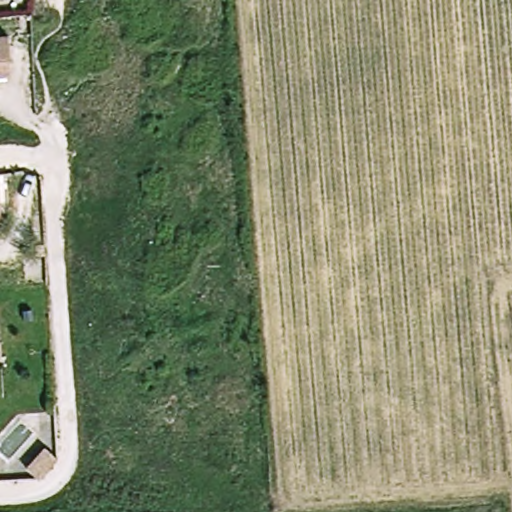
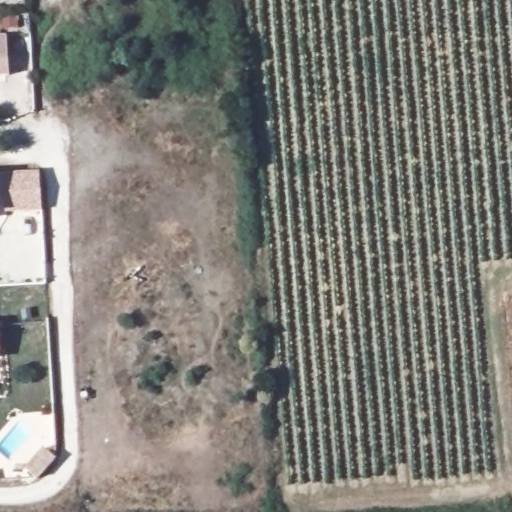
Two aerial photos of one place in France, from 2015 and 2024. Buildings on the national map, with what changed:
unchanged [(12,71),(0,72),(0,32),(9,31),(12,71)]
new [(41,171),(43,212),(7,214),(4,174),(41,171)]
demolished [(19,213),(0,214),(0,176),(17,175),(19,213)]

